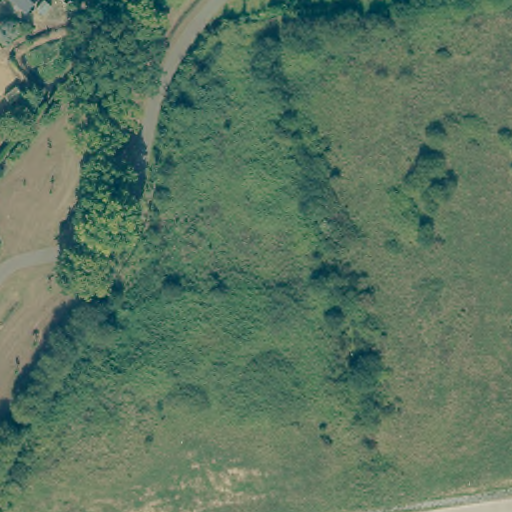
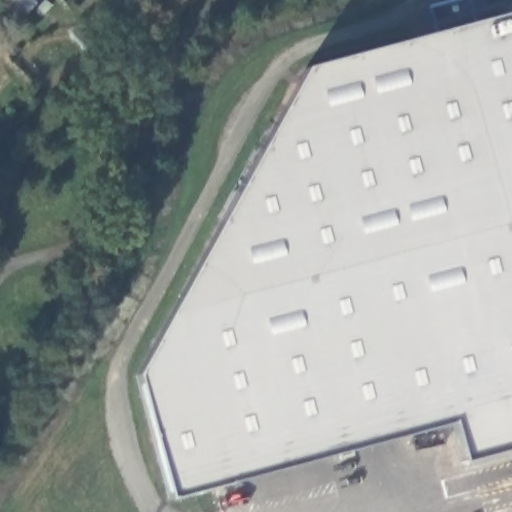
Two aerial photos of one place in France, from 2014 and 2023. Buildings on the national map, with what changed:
unchanged [(25,13),(12,0),(38,0),(25,13)]
new [(512,449),(462,463),(450,422),(169,498),(136,376),(305,70),(512,13),(512,449)]

